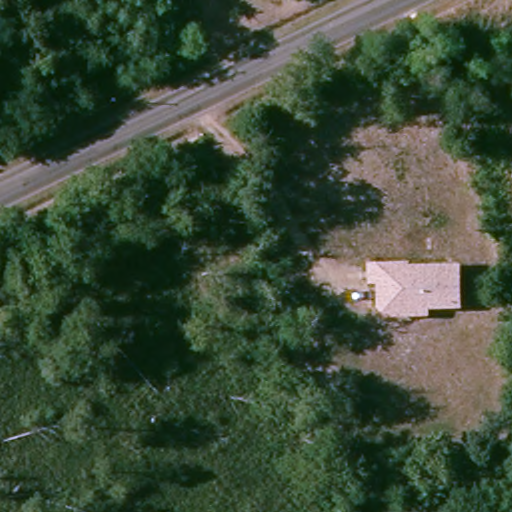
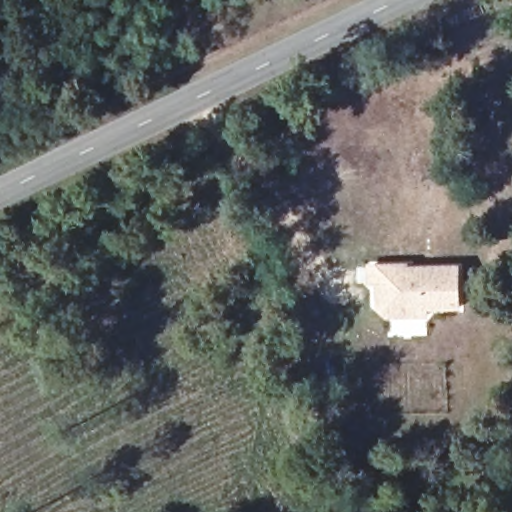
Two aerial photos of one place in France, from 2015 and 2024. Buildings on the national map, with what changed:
unchanged [(368,287),(367,270),(404,269),(404,273),(455,271),(456,311),(424,312),(424,319),(385,320),(377,312),(377,305),(377,287),(368,287)]

